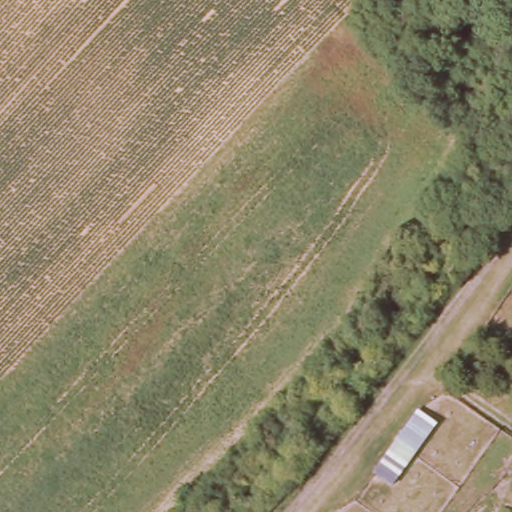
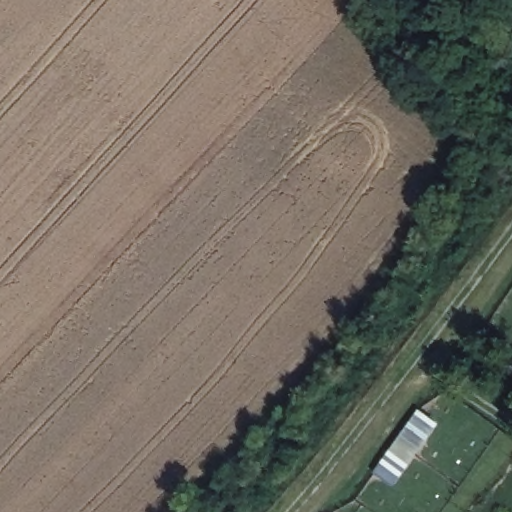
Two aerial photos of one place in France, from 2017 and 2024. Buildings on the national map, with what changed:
unchanged [(416,404),(437,417),(390,483),(369,467),(416,404)]

